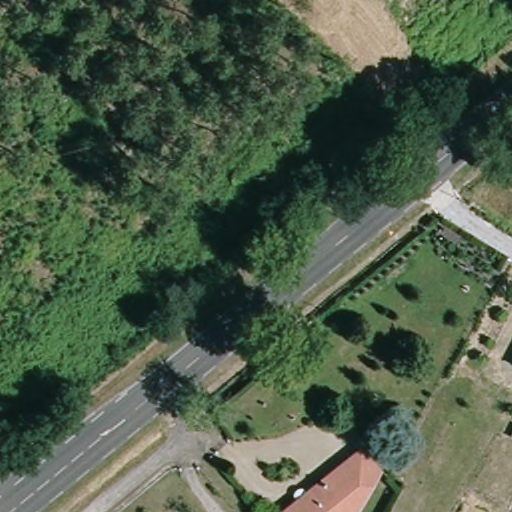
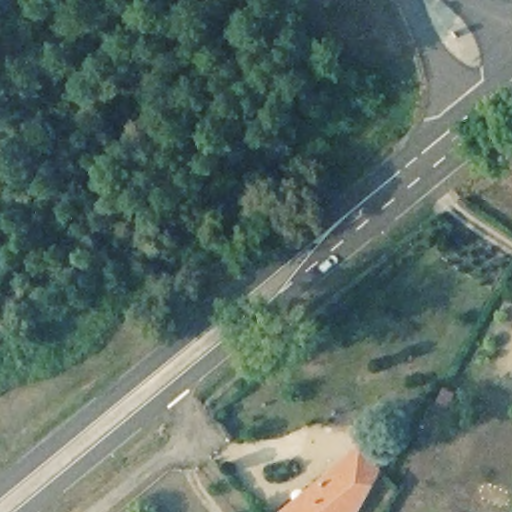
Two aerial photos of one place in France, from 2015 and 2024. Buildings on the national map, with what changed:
unchanged [(287,512),(287,511),(319,485),(316,482),(360,446),(377,466),(361,479),(366,486),(354,495),(358,500),(351,512),(287,512)]
unchanged [(464,512),(470,501),(486,508),(484,512),(464,512)]

